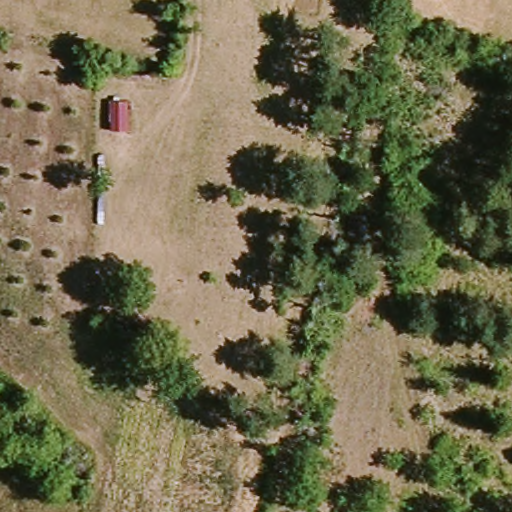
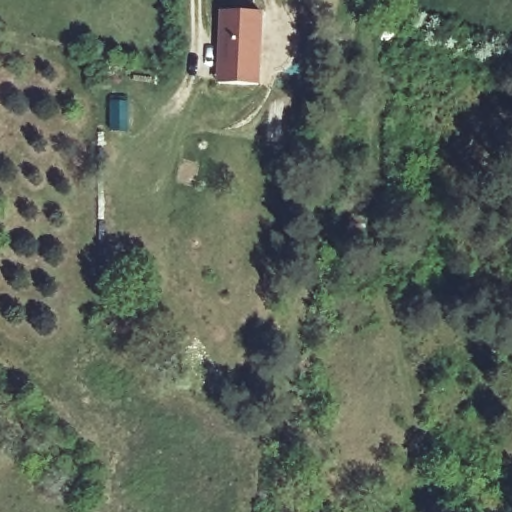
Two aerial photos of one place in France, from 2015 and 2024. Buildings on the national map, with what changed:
new [(260,84),(219,84),(221,12),(261,12),(260,84)]
unchanged [(343,236),(345,213),(364,215),(364,240),(343,236)]

